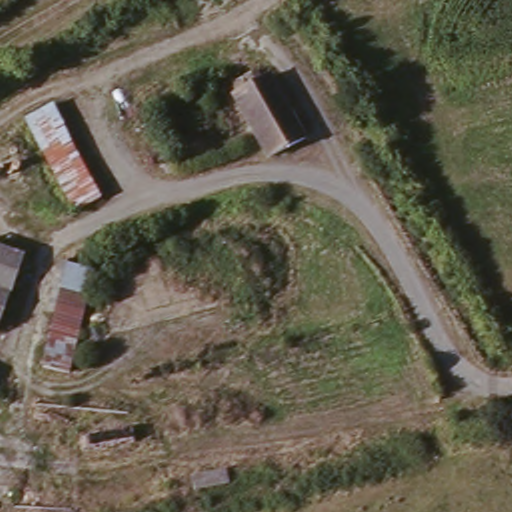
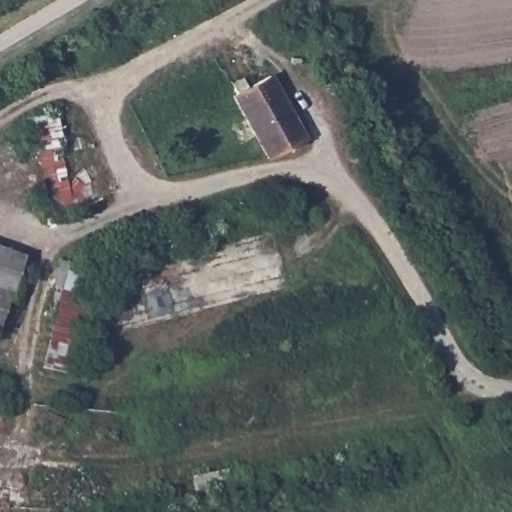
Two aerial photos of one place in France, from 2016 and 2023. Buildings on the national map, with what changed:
unchanged [(274,73),(307,137),(268,156),(235,92),(274,73)]
unchanged [(63,122),(100,195),(73,209),(35,137),(63,122)]
unchanged [(26,255),(0,331),(0,246),(26,255)]
unchanged [(92,269),(70,373),(43,367),(67,264),(92,269)]
unchanged [(228,472),(232,493),(196,500),(192,481),(228,472)]

